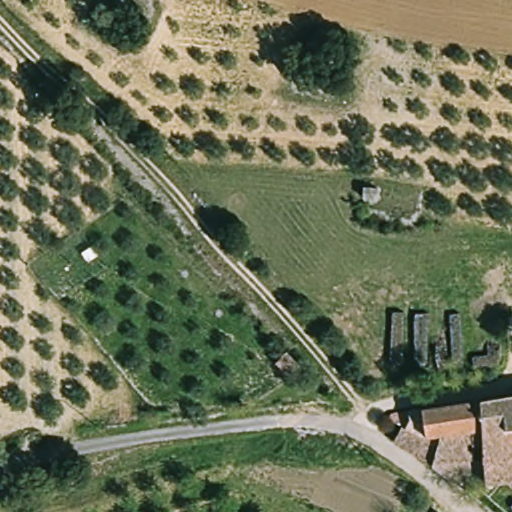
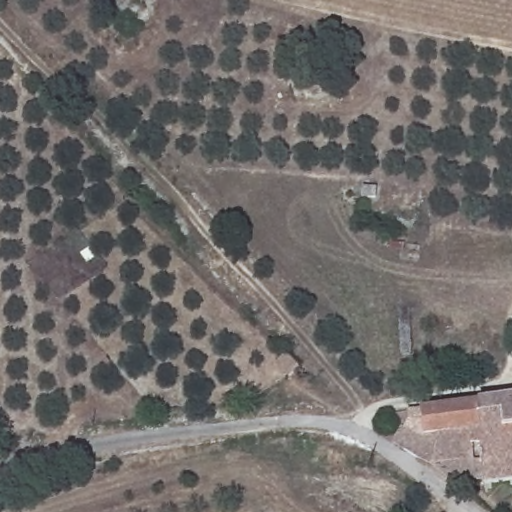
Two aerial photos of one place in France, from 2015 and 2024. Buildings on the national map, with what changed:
unchanged [(362,199),(363,187),(377,189),(376,200),(362,199)]
unchanged [(284,352),(297,365),(286,375),(274,363),(284,352)]
unchanged [(484,474),(450,475),(433,461),(434,460),(417,452),(393,437),(401,422),(405,424),(410,416),(408,407),(512,391),(512,476),(484,479),(484,474)]

